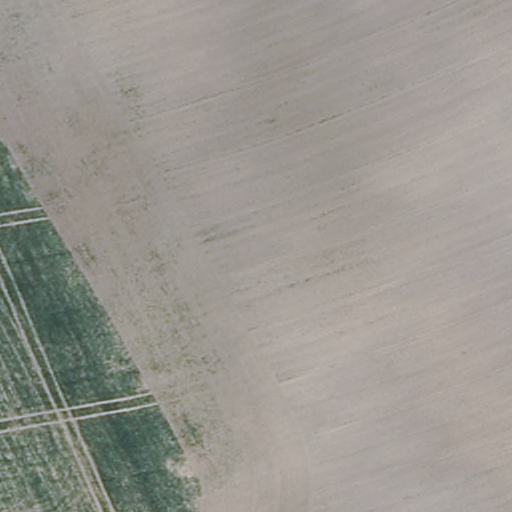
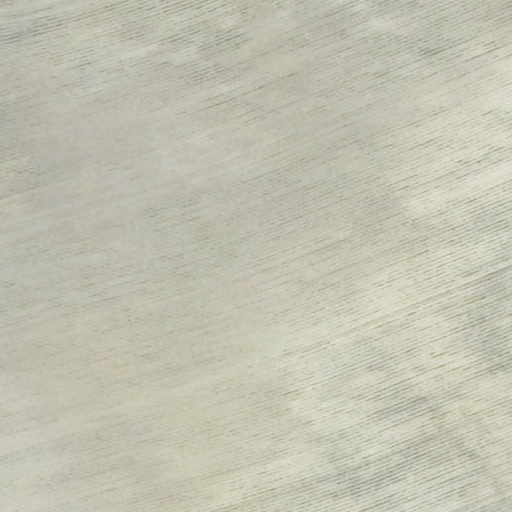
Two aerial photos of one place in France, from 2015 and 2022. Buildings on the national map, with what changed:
[]

